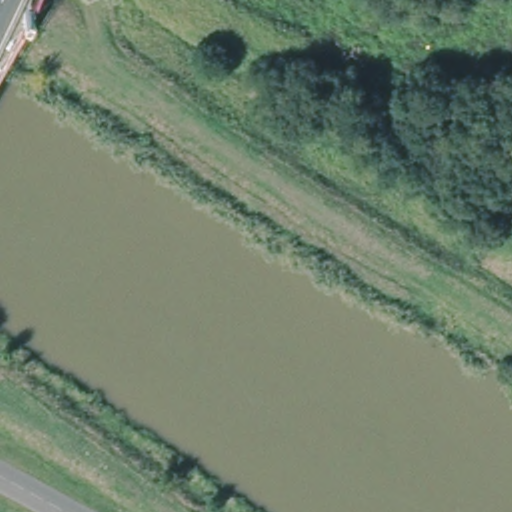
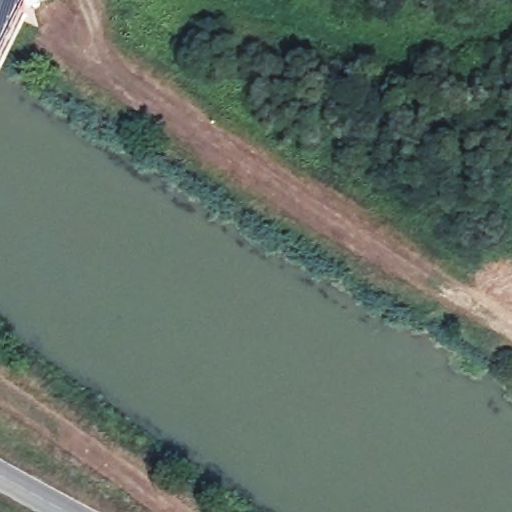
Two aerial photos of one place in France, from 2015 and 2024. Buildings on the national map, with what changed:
[]

